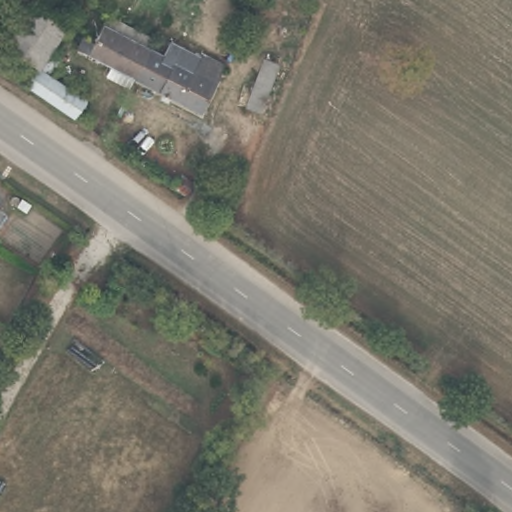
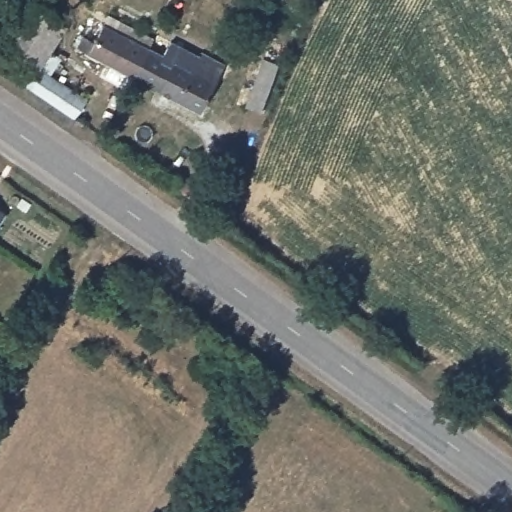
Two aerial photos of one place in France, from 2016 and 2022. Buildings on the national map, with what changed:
unchanged [(6,44),(37,0),(70,25),(39,67),(6,44)]
unchanged [(54,4),(44,0),(56,0),(54,4)]
unchanged [(108,75),(114,64),(81,46),(86,35),(96,40),(111,13),(156,38),(151,47),(134,77),(129,86),(108,75)]
unchanged [(134,77),(151,47),(170,57),(174,50),(198,63),(203,54),(226,67),(202,112),(134,77)]
unchanged [(262,56),(284,62),(267,114),(242,107),(262,56)]
unchanged [(75,118),(27,85),(39,67),(85,98),(75,118)]
unchanged [(166,187),(175,172),(192,183),(183,201),(166,187)]
unchanged [(12,209),(19,200),(28,207),(22,216),(12,209)]
unchanged [(0,222),(0,210),(6,214),(0,222)]

